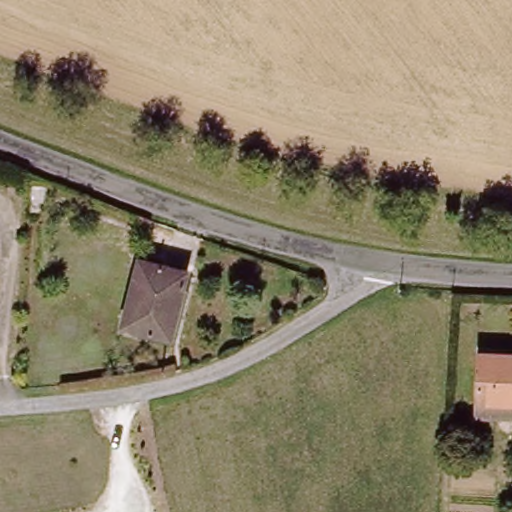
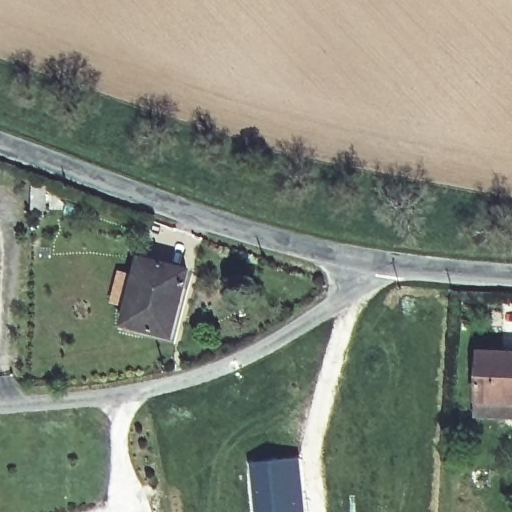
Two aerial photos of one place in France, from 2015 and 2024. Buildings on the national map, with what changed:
unchanged [(26,192),(45,189),(48,210),(30,212),(26,192)]
unchanged [(175,331),(129,324),(136,262),(183,269),(175,331)]
unchanged [(505,417),(479,416),(484,349),(512,352),(512,417),(505,417)]
new [(299,457),(305,512),(253,512),(248,462),(299,457)]

